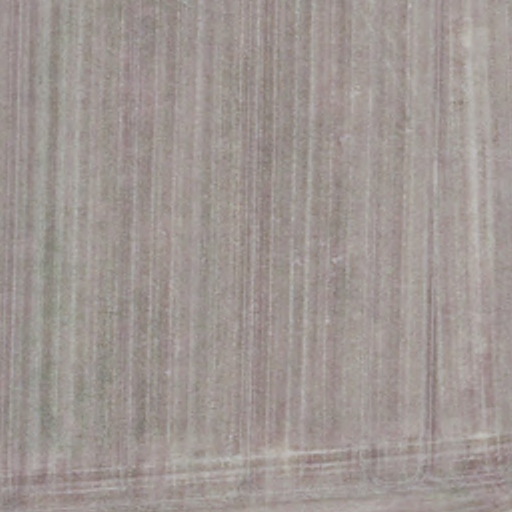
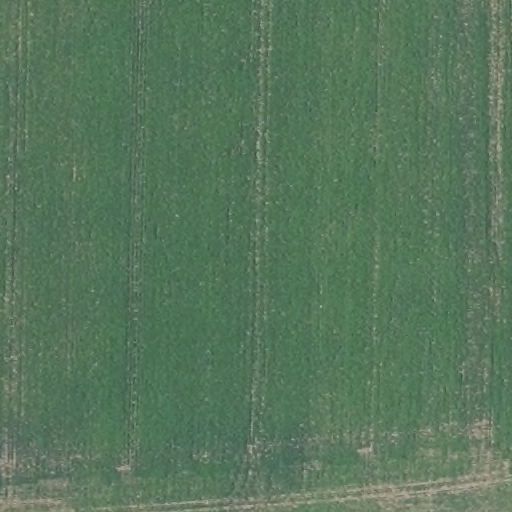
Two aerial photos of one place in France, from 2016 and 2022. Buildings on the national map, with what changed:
[]

